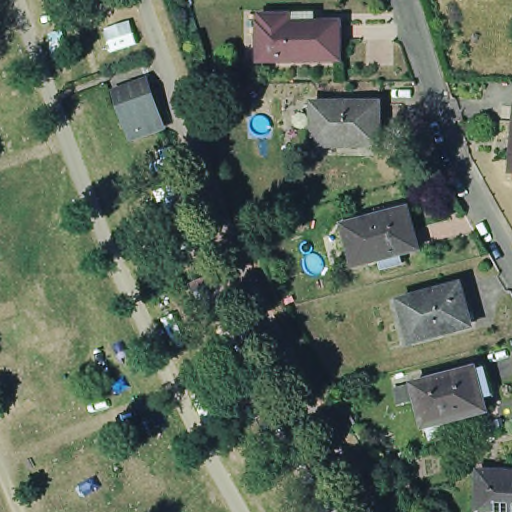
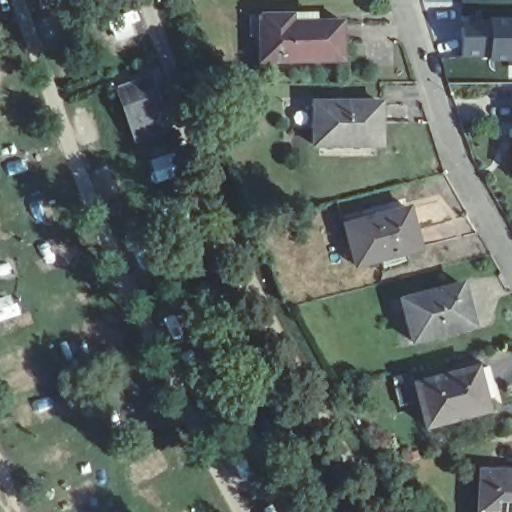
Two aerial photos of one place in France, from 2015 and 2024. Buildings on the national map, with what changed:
unchanged [(337,58),(250,57),(252,18),(255,17),(255,9),(285,9),(286,17),(336,16),(337,58)]
new [(460,18),(512,20),(512,64),(460,64),(460,18)]
unchanged [(104,90),(134,81),(148,76),(156,100),(142,104),(112,114),(104,90)]
unchanged [(508,130),(510,96),(512,96),(512,173),(505,173),(505,164),(500,164),(502,142),(496,141),(497,129),(508,130)]
unchanged [(209,114),(198,117),(193,100),(203,98),(209,114)]
unchanged [(376,140),(306,141),(307,99),(375,99),(376,140)]
unchanged [(415,244),(352,262),(341,222),(404,204),(415,244)]
unchanged [(467,318),(450,321),(452,328),(407,338),(395,295),(457,280),(467,318)]
unchanged [(486,392),(477,395),(480,407),(418,424),(407,382),(477,362),(486,392)]
unchanged [(512,458),(512,501),(476,500),(478,456),(512,458)]
unchanged [(512,512),(476,512),(476,500),(512,501),(512,512)]

